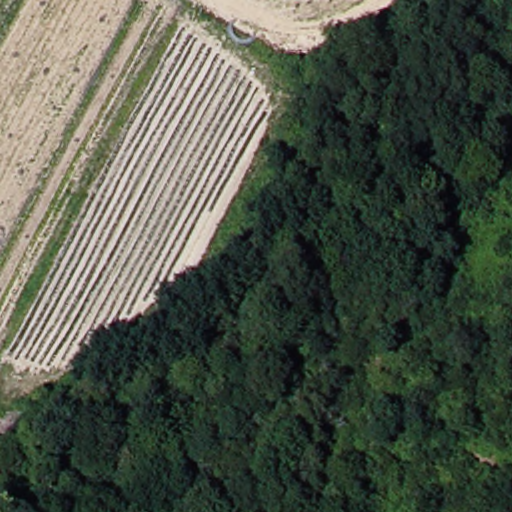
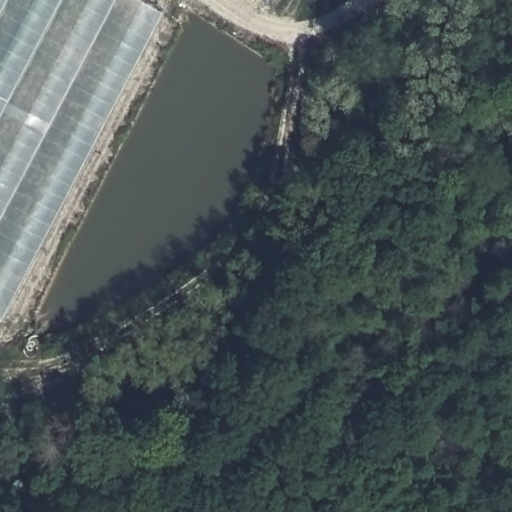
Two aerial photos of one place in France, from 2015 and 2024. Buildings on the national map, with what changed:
demolished [(0,204),(0,0),(109,0),(0,204)]
new [(2,323),(0,322),(0,0),(138,0),(164,14),(2,323)]
new [(267,2),(264,0),(270,0),(267,2)]

